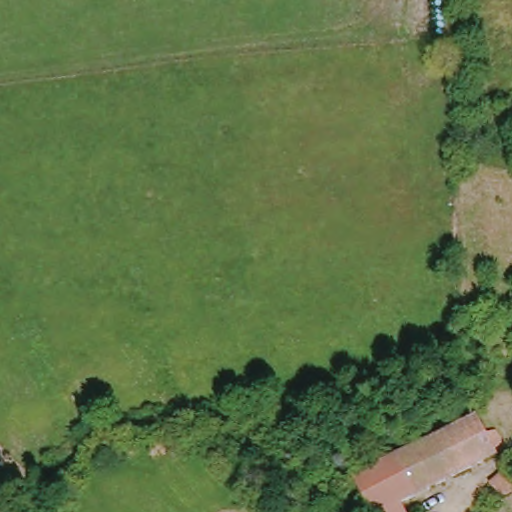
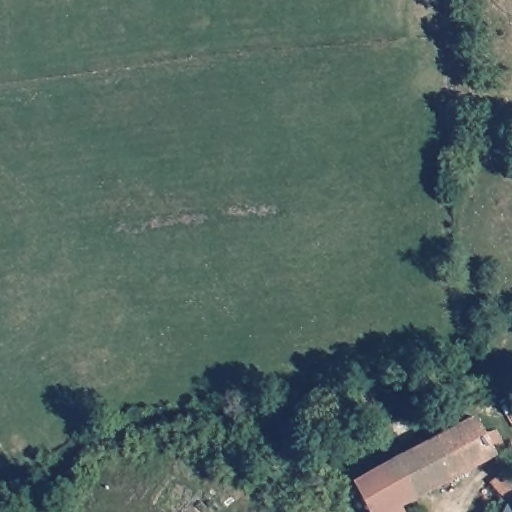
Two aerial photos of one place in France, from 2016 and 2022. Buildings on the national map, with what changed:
unchanged [(395,462),(429,444),(476,420),(482,438),(498,431),(506,435),(509,442),(505,449),(494,455),(497,460),(409,505),(396,512),(374,512),(358,481),(371,474),(395,462)]
unchanged [(508,500),(494,487),(506,475),(512,482),(512,499),(508,500)]
unchanged [(409,505),(411,512),(396,512),(409,505)]

